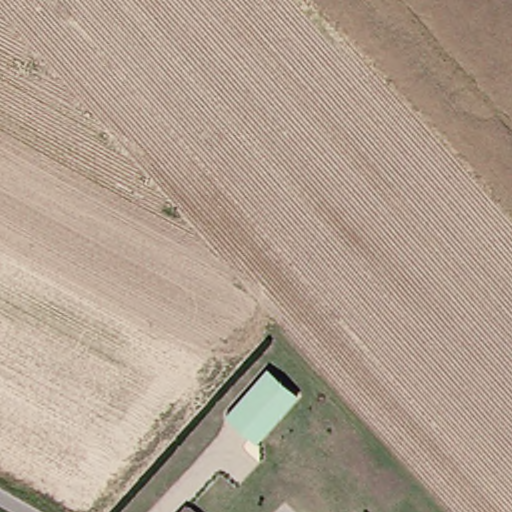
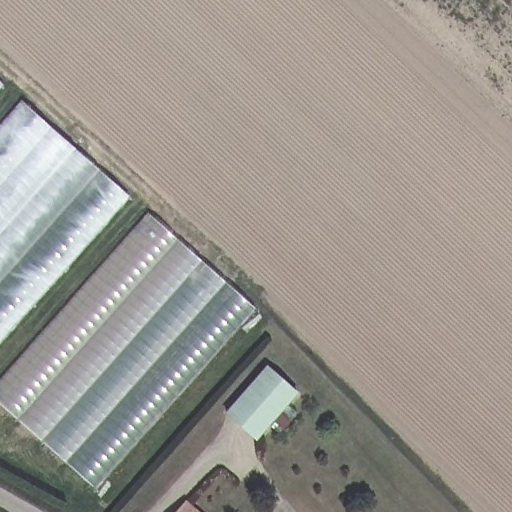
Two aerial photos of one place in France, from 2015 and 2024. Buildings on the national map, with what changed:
new [(23,105),(125,196),(0,336),(0,131),(23,105)]
new [(0,405),(0,383),(148,214),(254,308),(92,487),(0,405)]
unchanged [(285,410),(265,434),(248,420),(241,414),(234,408),(273,361),(281,368),(304,387),(285,410)]
unchanged [(207,512),(188,512),(197,503),(207,512)]

